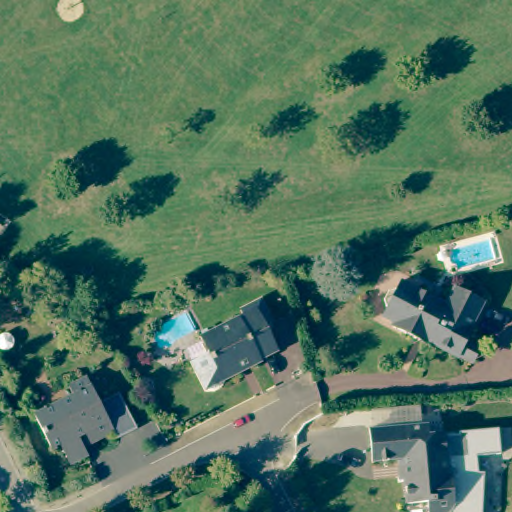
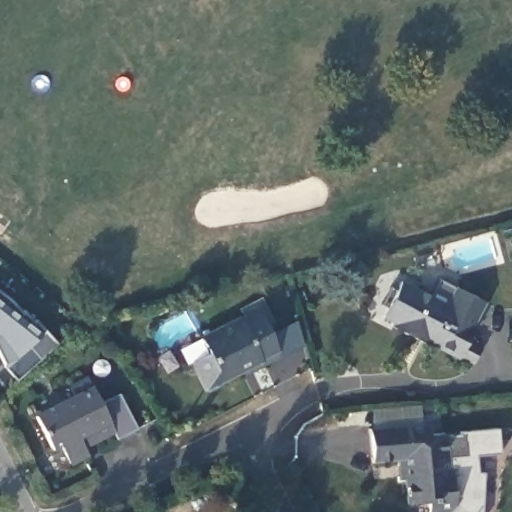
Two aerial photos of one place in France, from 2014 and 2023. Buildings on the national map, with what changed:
unchanged [(465,365),(452,358),(422,342),(420,346),(385,327),(387,323),(377,317),(381,308),(377,302),(386,290),(391,291),(395,283),(439,307),(449,289),(477,304),(461,342),(474,349),(465,365)]
new [(14,378),(2,365),(0,360),(0,293),(57,345),(14,378)]
unchanged [(239,317),(236,312),(255,302),(266,323),(258,327),(271,353),(244,368),(241,362),(231,368),(231,375),(201,390),(186,362),(202,354),(195,340),(239,317)]
unchanged [(140,439),(119,449),(116,441),(99,449),(96,443),(83,449),(90,463),(71,472),(62,453),(54,457),(39,427),(79,408),(72,393),(88,386),(101,411),(121,401),(140,439)]
unchanged [(401,464),(401,458),(376,460),(373,429),(399,427),(406,434),(415,425),(429,424),(430,435),(445,433),(448,468),(444,475),(455,488),(457,502),(449,511),(437,512),(431,512),(430,501),(412,503),(410,478),(403,478),(401,464)]

